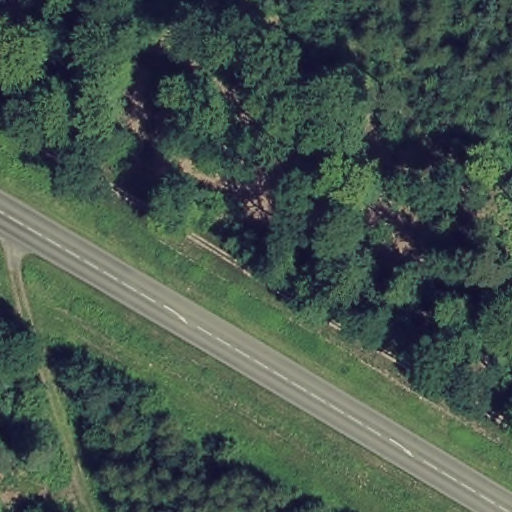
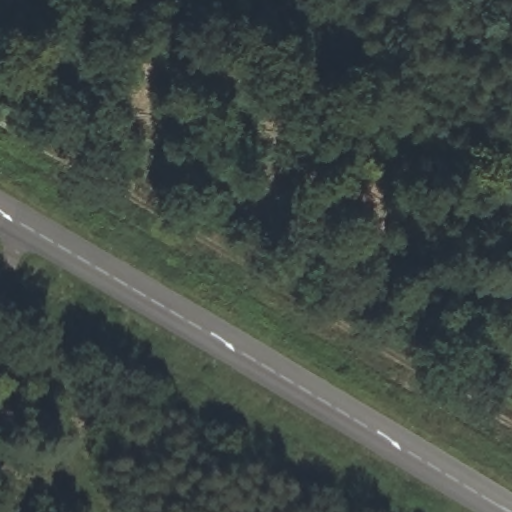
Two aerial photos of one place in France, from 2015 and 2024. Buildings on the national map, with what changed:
[]

